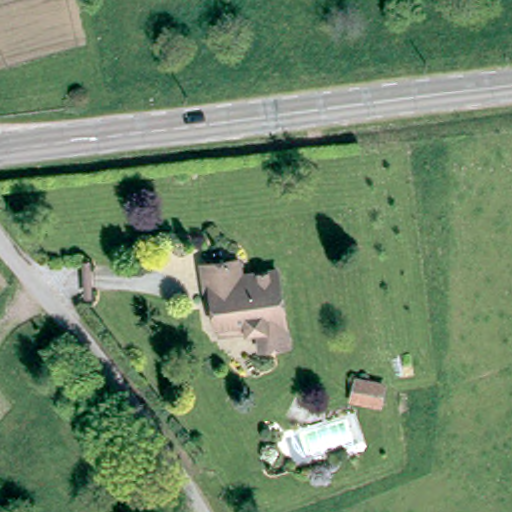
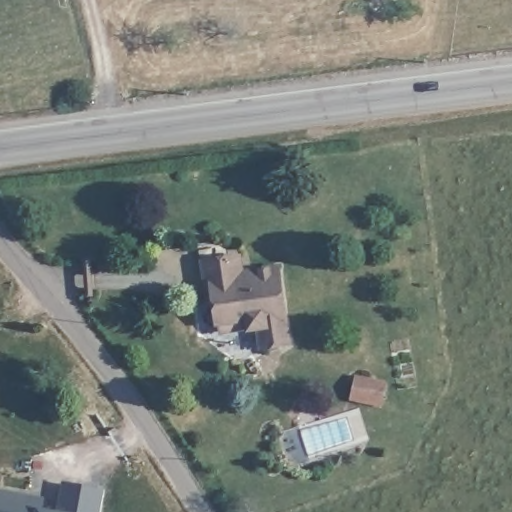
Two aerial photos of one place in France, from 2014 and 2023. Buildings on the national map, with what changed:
unchanged [(244,335),(216,334),(216,328),(213,328),(213,300),(206,299),(206,264),(278,263),(279,357),(255,358),(255,339),(243,339),(244,335)]
new [(388,382),(383,409),(349,401),(355,375),(388,382)]
unchanged [(339,431),(312,421),(319,403),(346,413),(339,431)]
new [(103,487),(100,512),(0,512),(0,486),(48,495),(46,508),(55,510),(60,479),(103,487)]

